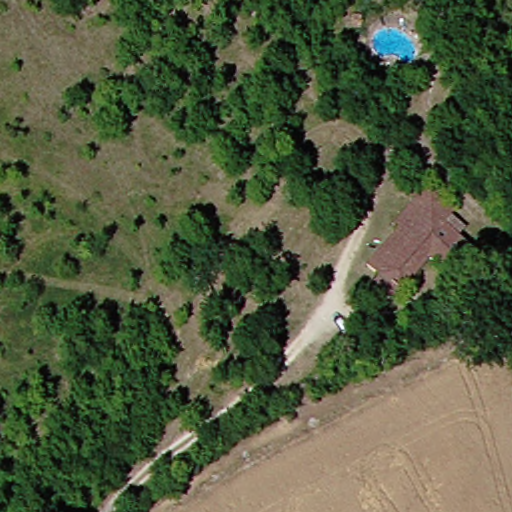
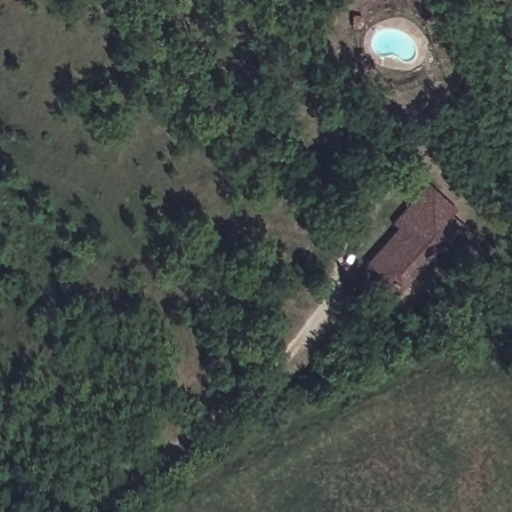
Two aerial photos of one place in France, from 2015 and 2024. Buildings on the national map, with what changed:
unchanged [(468,281),(436,261),(401,309),(378,292),(387,280),(371,267),(398,229),(418,202),(432,181),(460,211),(447,225),(486,257),(468,281)]

